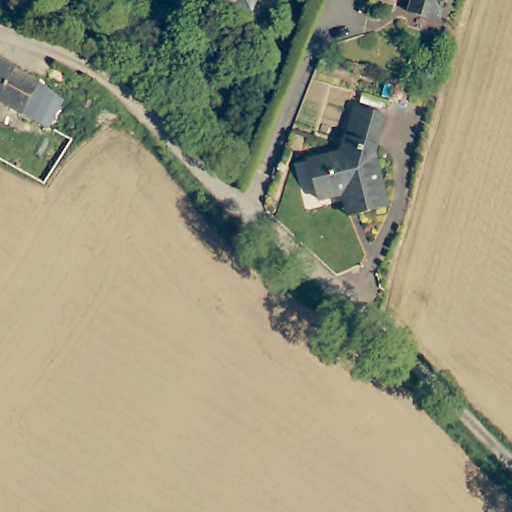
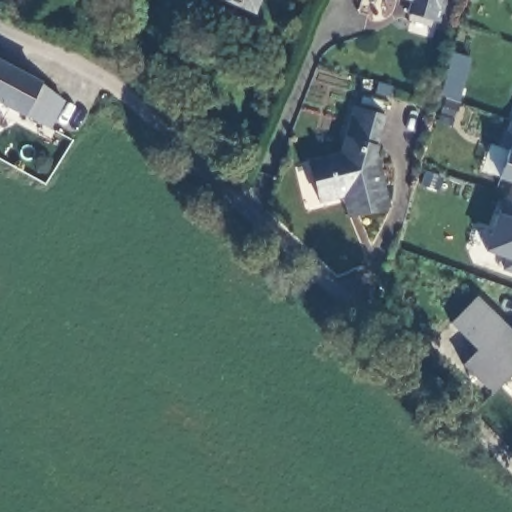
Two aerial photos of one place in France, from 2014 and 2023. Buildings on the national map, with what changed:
unchanged [(226,0),(257,0),(252,11),(226,0)]
unchanged [(450,4),(445,21),(413,12),(416,0),(446,0),(445,2),(450,4)]
unchanged [(53,127),(0,98),(0,59),(44,82),(68,100),(53,127)]
unchanged [(343,194),(319,200),(309,160),(341,152),(355,105),(386,114),(375,153),(388,205),(358,212),(348,215),(343,194)]
new [(497,178),(507,149),(499,147),(509,119),(512,120),(512,183),(497,178)]
new [(498,267),(504,257),(487,251),(499,211),(506,193),(512,195),(512,272),(498,267)]
new [(478,295),(512,331),(512,377),(510,375),(490,395),(459,365),(475,348),(451,323),(478,295)]

